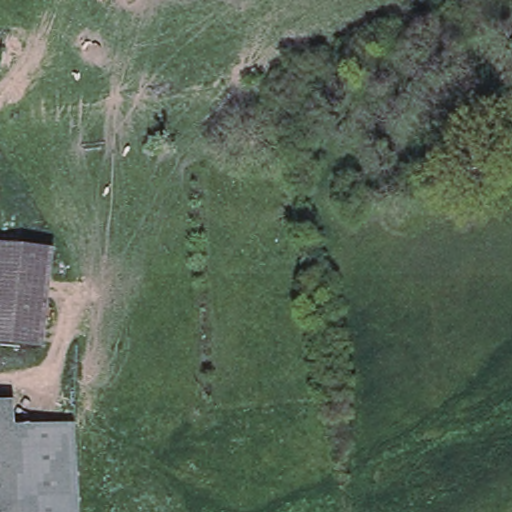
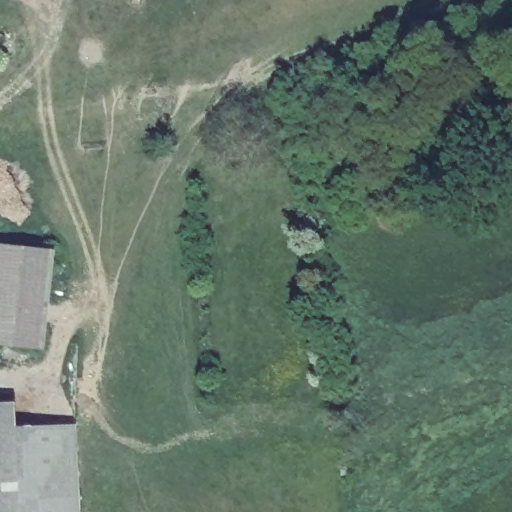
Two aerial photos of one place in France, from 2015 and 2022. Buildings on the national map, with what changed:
unchanged [(45,351),(0,346),(0,243),(56,251),(45,351)]
unchanged [(16,428),(0,429),(0,404),(15,403),(16,428)]
unchanged [(77,426),(81,512),(21,512),(16,428),(77,426)]
unchanged [(21,512),(0,512),(0,429),(16,428),(21,512)]

